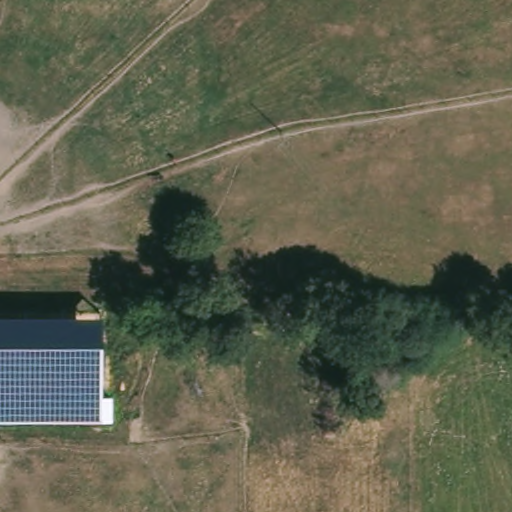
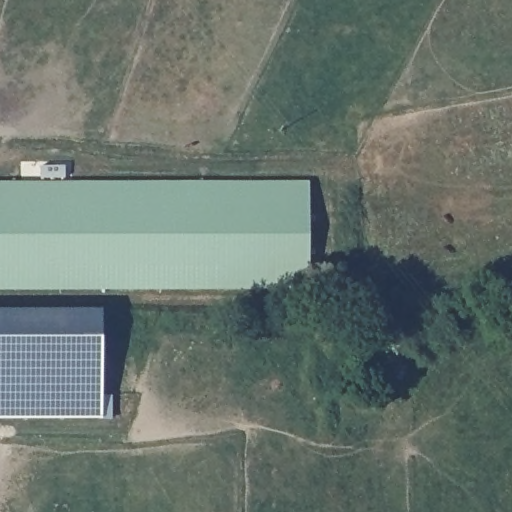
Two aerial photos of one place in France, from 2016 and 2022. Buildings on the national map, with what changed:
new [(310,288),(0,288),(0,182),(310,181),(310,288)]
unchanged [(0,312),(101,312),(102,417),(0,417),(0,312)]

